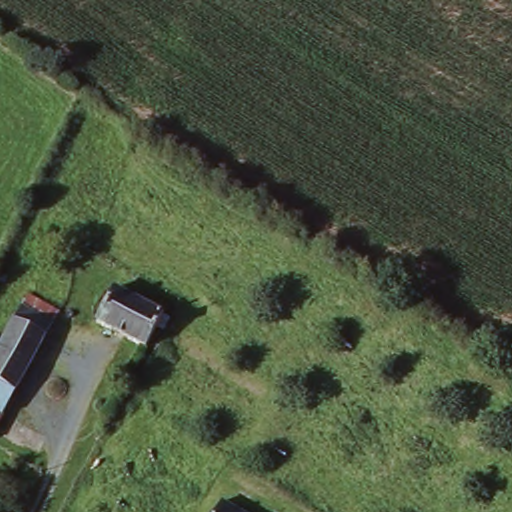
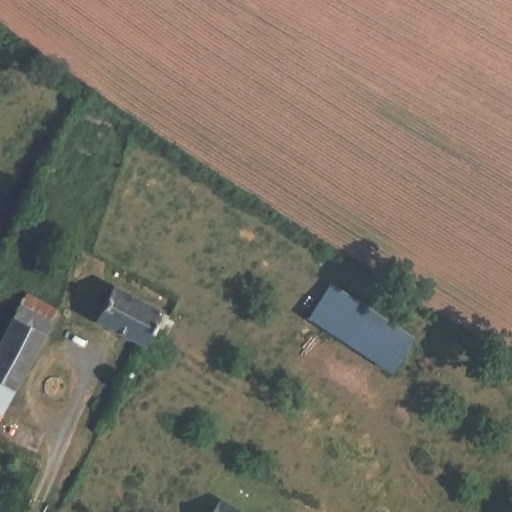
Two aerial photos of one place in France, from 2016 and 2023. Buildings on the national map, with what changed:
new [(390,373),(306,315),(332,281),(413,338),(390,373)]
unchanged [(110,284),(159,312),(141,343),(93,316),(110,284)]
unchanged [(22,298),(56,315),(0,413),(0,337),(22,298)]
unchanged [(245,512),(217,512),(224,500),(245,512)]

